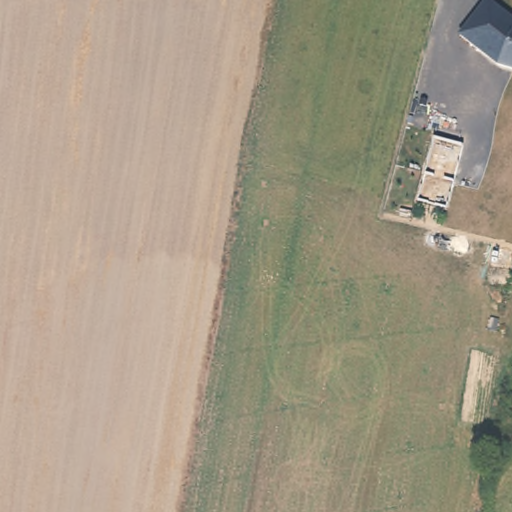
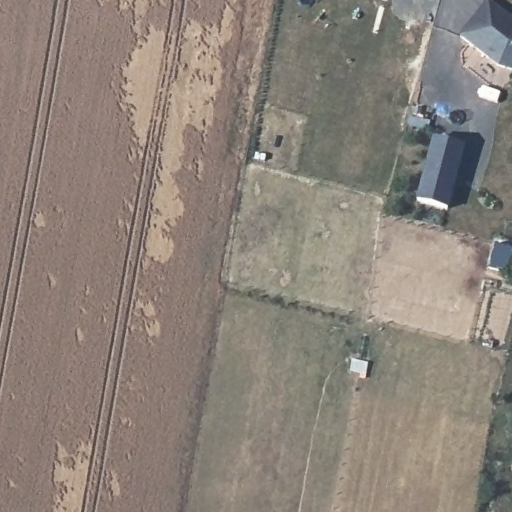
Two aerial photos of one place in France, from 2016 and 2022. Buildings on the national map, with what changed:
unchanged [(499,70),(459,38),(486,0),(487,0),(512,16),(512,74),(499,70)]
new [(464,145),(448,209),(416,200),(432,136),(464,145)]

